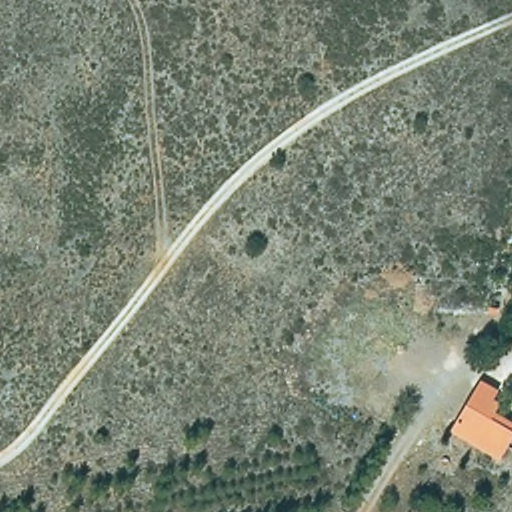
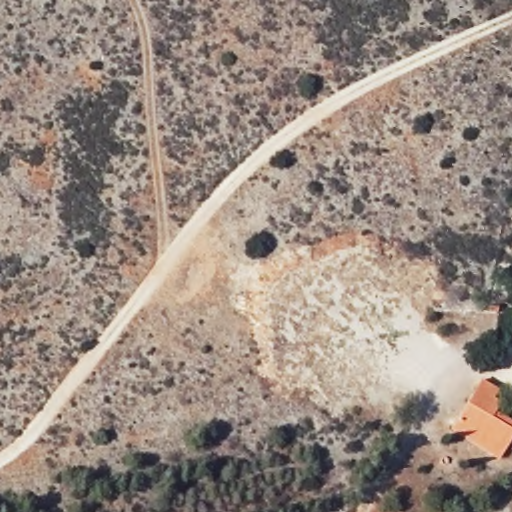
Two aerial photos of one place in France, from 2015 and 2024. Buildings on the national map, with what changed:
unchanged [(504,393),(496,407),(512,415),(512,441),(500,463),(450,433),(480,379),(504,393)]

